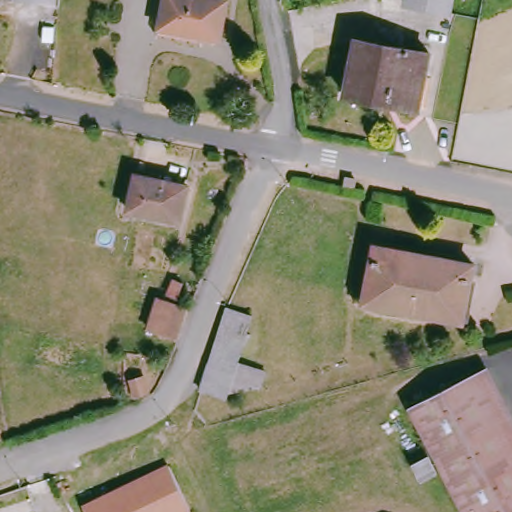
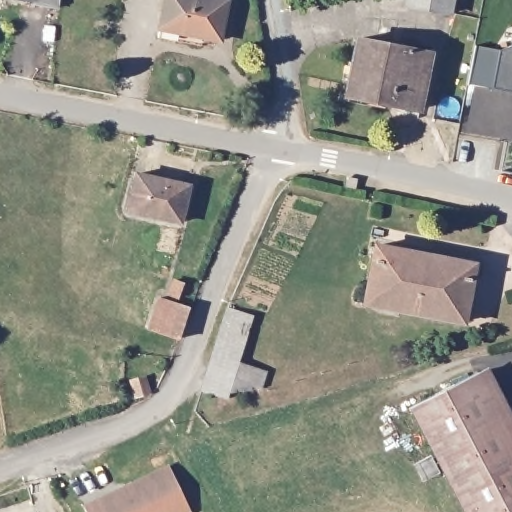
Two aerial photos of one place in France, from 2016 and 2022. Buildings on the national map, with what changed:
unchanged [(17,0),(56,0),(55,6),(17,0)]
unchanged [(164,32),(170,0),(224,0),(232,1),(225,42),(205,38),(204,49),(163,42),(164,32)]
unchanged [(409,3),(410,0),(456,0),(454,12),(409,3)]
unchanged [(434,58),(424,113),(349,99),(361,43),(434,58)]
new [(512,43),(512,92),(489,87),(465,83),(472,45),(497,49),(512,43)]
unchanged [(140,176),(191,188),(183,224),(133,213),(140,176)]
unchanged [(462,321),(363,302),(374,244),(473,263),(462,321)]
unchanged [(148,329),(158,297),(167,299),(176,276),(188,281),(178,301),(192,307),(182,340),(148,329)]
unchanged [(240,369),(214,361),(231,304),(258,312),(243,358),(240,369)]
unchanged [(271,367),(266,384),(236,387),(233,395),(206,387),(214,361),(240,369),(243,358),(271,367)]
unchanged [(424,484),(414,464),(432,449),(411,407),(491,368),(512,408),(512,512),(464,512),(444,473),(424,484)]
unchanged [(146,375),(142,393),(128,390),(131,373),(146,375)]
unchanged [(173,467),(193,511),(191,512),(89,512),(88,508),(173,467)]

